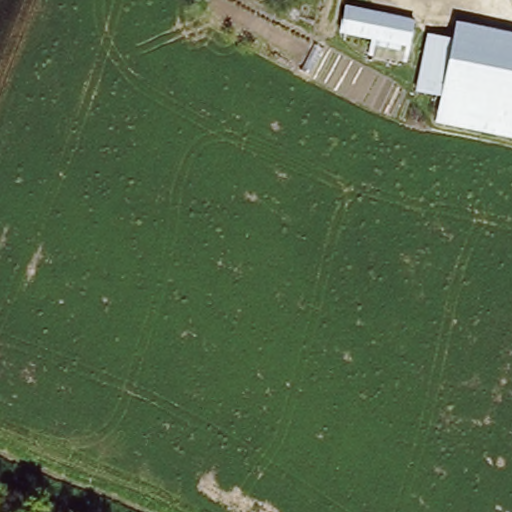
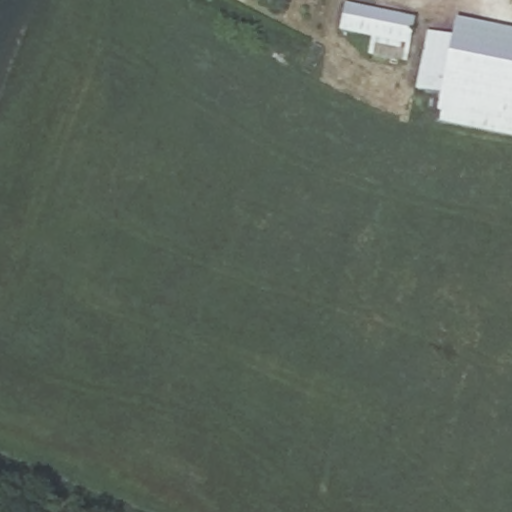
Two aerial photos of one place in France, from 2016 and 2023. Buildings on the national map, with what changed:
unchanged [(335,5),(411,22),(403,62),(365,53),(365,47),(338,39),(340,32),(329,30),(335,5)]
unchanged [(429,34),(454,39),(457,22),(512,34),(512,136),(435,120),(439,97),(416,92),(429,34)]

